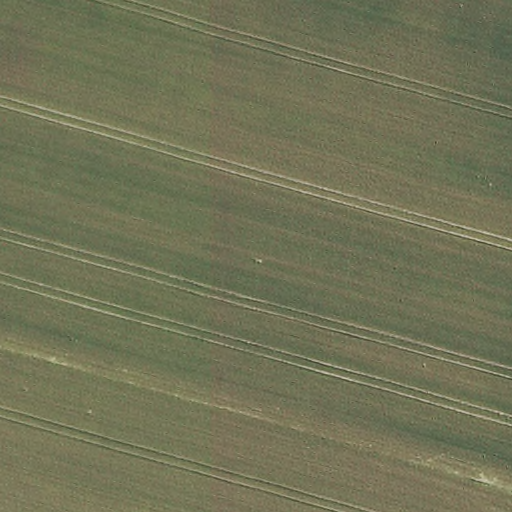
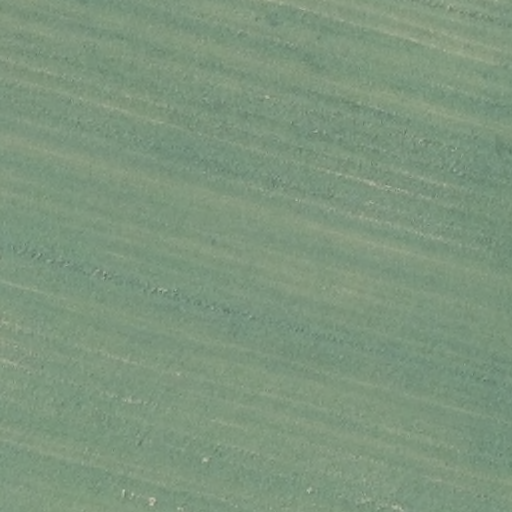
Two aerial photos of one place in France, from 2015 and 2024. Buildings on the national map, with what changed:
[]

